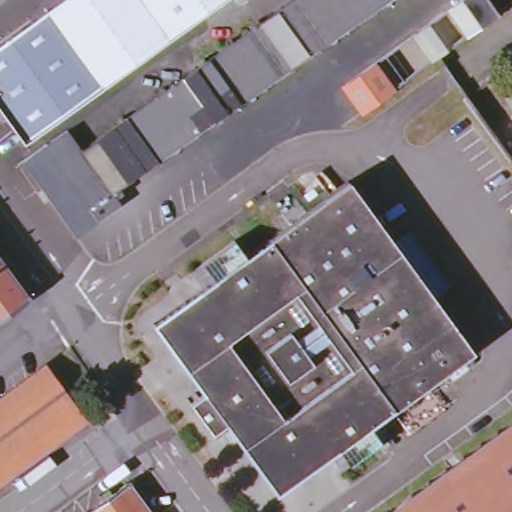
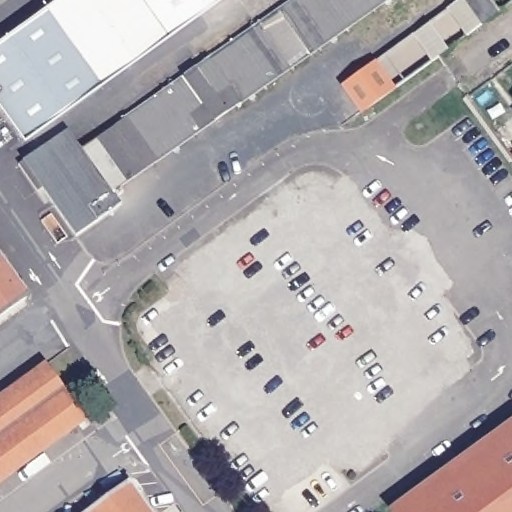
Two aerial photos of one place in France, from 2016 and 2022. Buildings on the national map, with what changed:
unchanged [(106,151),(311,0),(401,0),(131,198),(140,209),(100,239),(68,196),(62,200),(42,173),(95,134),(106,151)]
unchanged [(64,0),(219,0),(102,87),(47,13),(64,0)]
unchanged [(468,0),(492,0),(502,15),(467,41),(448,15),(468,0)]
unchanged [(47,13),(102,87),(27,143),(0,106),(0,47),(47,13)]
unchanged [(448,15),(467,41),(399,91),(380,65),(448,15)]
unchanged [(380,65),(399,91),(367,114),(348,89),(380,65)]
unchanged [(512,115),(509,111),(512,109),(512,115)]
demolished [(211,388),(201,372),(220,358),(212,347),(228,335),(202,299),(220,285),(214,277),(202,260),(233,237),(251,262),(285,238),(280,229),(350,178),(400,248),(410,241),(425,261),(416,268),(475,349),(405,400),(398,392),(365,416),(383,441),(352,463),(340,447),(340,446),(334,438),(314,452),(287,415),(270,427),(263,417),(245,432),(233,418),(229,421),(217,429),(195,399),(207,391),(211,388)]
unchanged [(30,289),(0,312),(0,248),(30,289)]
unchanged [(46,366),(64,390),(83,418),(84,419),(0,481),(0,400),(46,366)]
unchanged [(512,512),(391,512),(512,422),(512,512)]
unchanged [(148,512),(91,512),(128,485),(148,512)]

